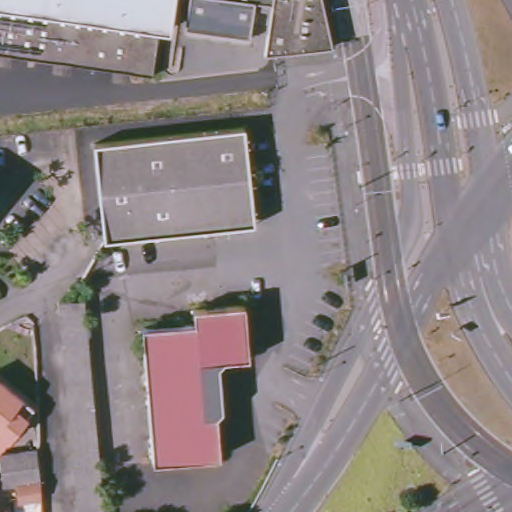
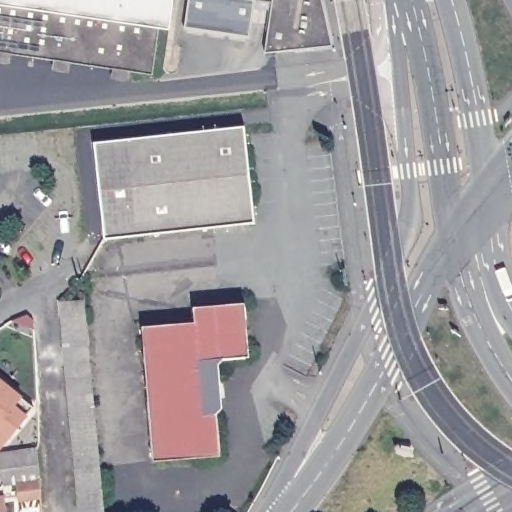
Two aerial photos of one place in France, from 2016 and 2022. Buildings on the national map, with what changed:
unchanged [(157,20),(150,68),(0,48),(0,0),(170,0),(167,22),(157,20)]
unchanged [(182,21),(186,0),(252,0),(248,30),(182,21)]
unchanged [(263,46),(269,0),(324,0),(333,40),(263,46)]
unchanged [(103,240),(95,143),(244,127),(253,223),(103,240)]
unchanged [(108,512),(79,512),(57,303),(85,299),(108,512)]
unchanged [(145,325),(197,321),(195,307),(245,303),(250,356),(201,360),(206,416),(219,414),(222,456),(164,460),(156,461),(145,325)]
unchanged [(34,399),(0,444),(0,374),(34,399)]
unchanged [(38,494),(13,496),(12,479),(0,481),(0,449),(35,445),(37,461),(38,477),(38,494)]
unchanged [(7,491),(7,492),(9,512),(0,512),(0,492),(7,491)]

